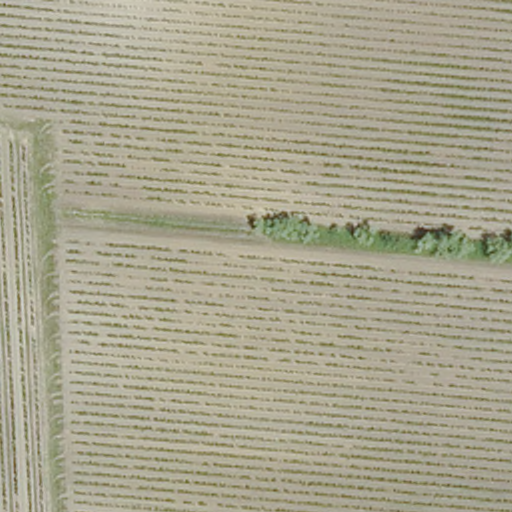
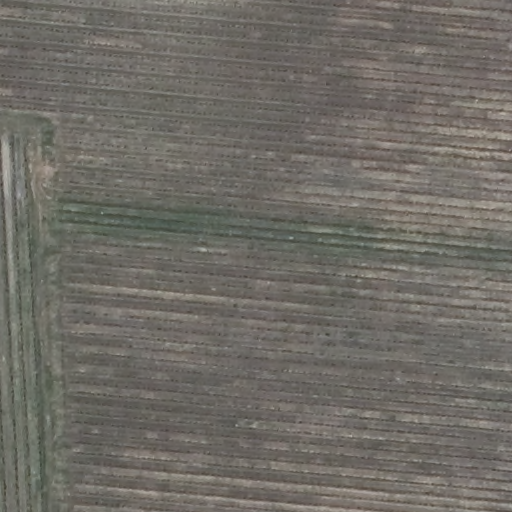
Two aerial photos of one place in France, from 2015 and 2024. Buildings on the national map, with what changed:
[]

